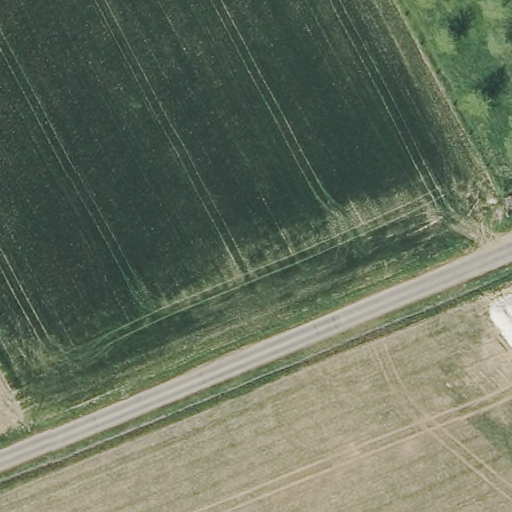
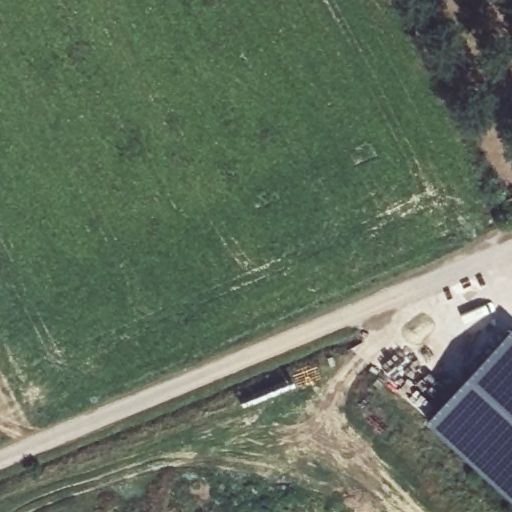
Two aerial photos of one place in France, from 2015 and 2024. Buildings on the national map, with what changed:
new [(428,420),(512,331),(512,498),(428,420)]

